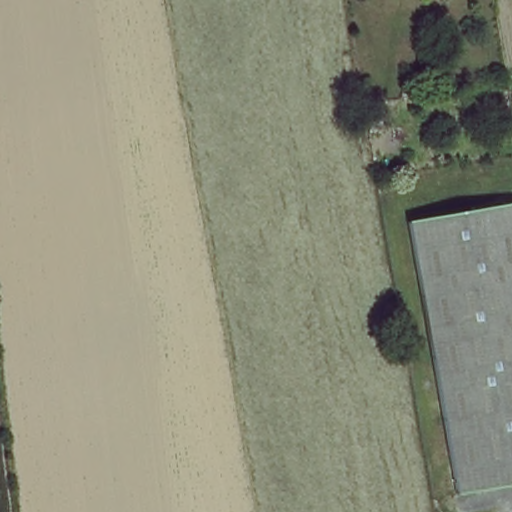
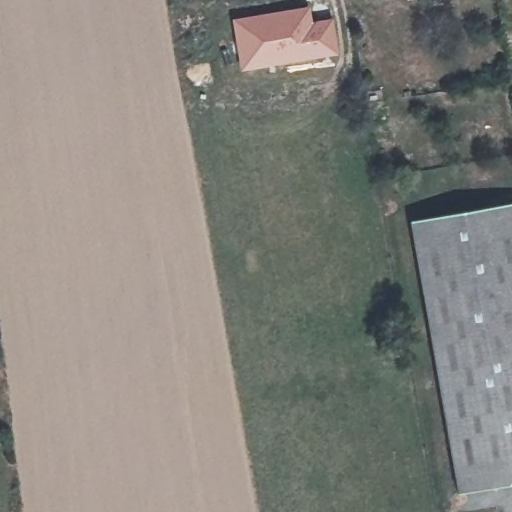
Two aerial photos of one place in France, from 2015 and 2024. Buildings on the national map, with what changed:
new [(310,5),(313,20),(333,17),(339,55),(239,71),(230,18),(310,5)]
unchanged [(512,485),(460,494),(412,221),(512,204),(512,485)]

